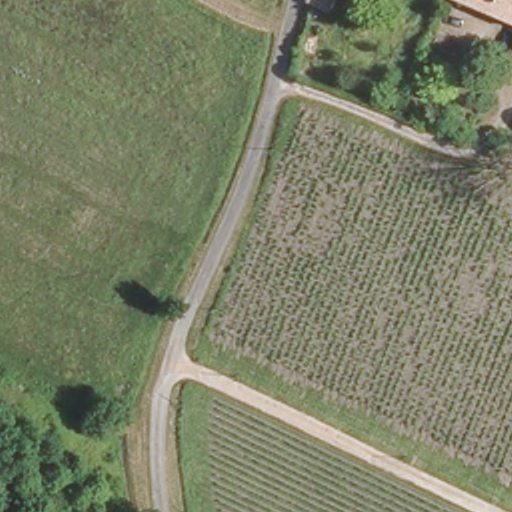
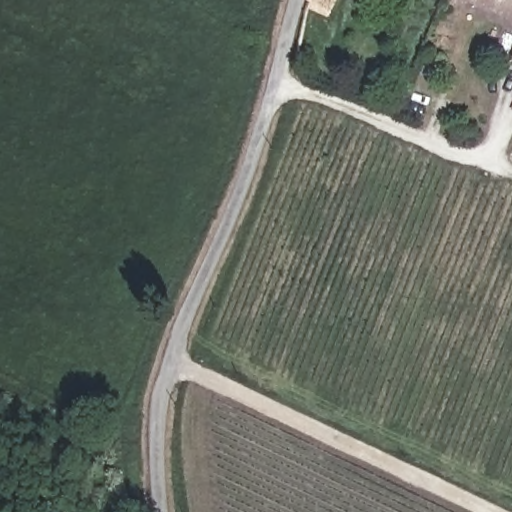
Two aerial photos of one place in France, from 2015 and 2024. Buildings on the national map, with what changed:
unchanged [(512,22),(461,0),(512,0),(512,22)]

